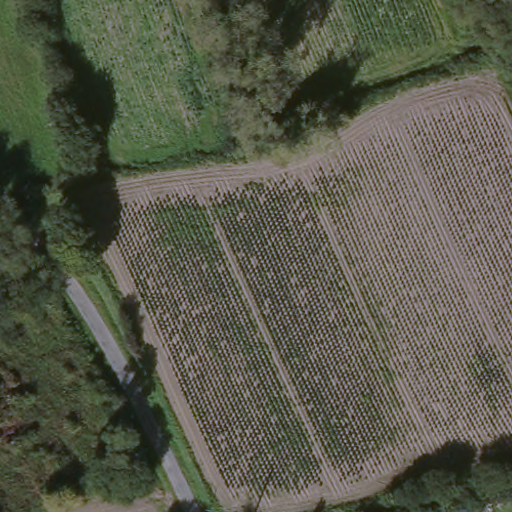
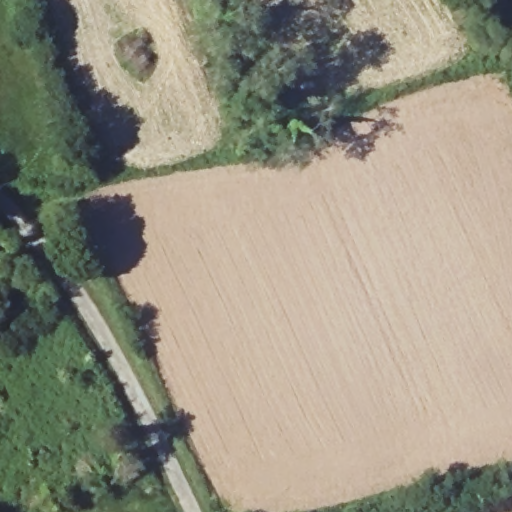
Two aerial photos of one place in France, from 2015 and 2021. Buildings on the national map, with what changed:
[]

